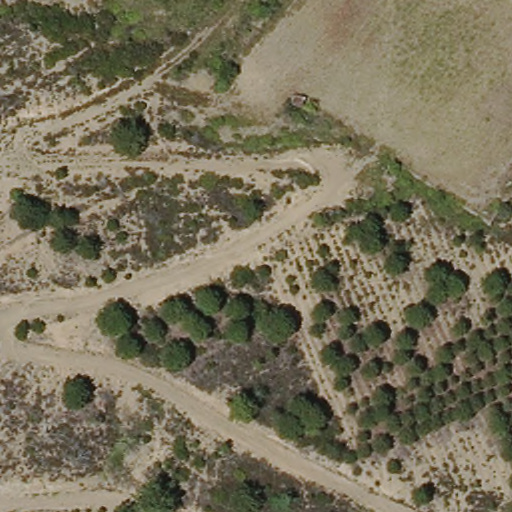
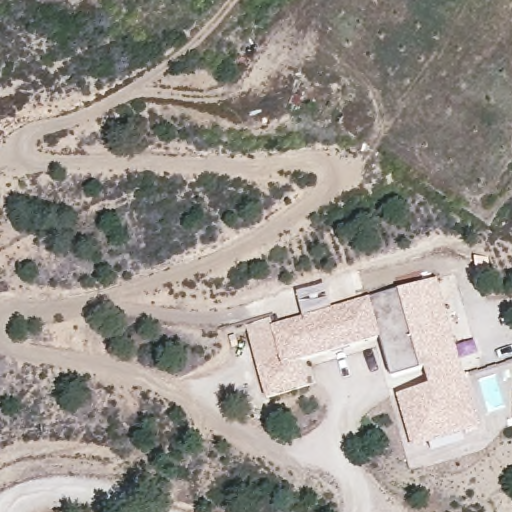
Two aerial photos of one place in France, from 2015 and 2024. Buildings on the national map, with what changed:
new [(420,365),(390,375),(377,333),(298,357),(306,383),(265,395),(254,360),(278,352),(269,322),(432,272),(457,354),(454,355),(460,373),(475,425),(413,442),(398,390),(425,383),(420,365)]

